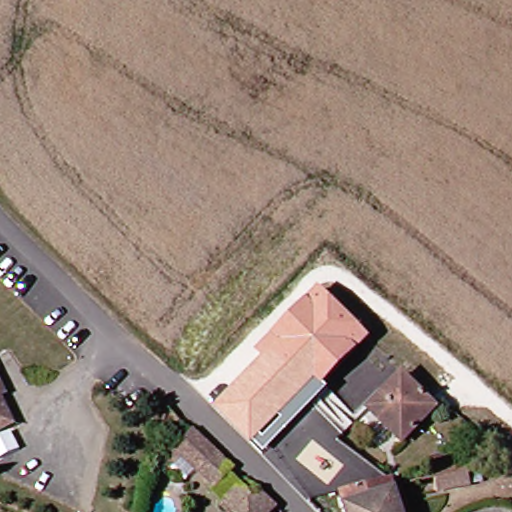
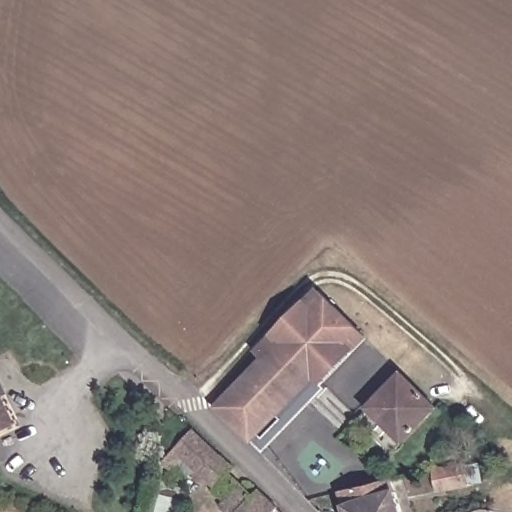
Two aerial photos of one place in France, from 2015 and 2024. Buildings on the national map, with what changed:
unchanged [(320,301),(354,335),(247,442),(212,407),(320,301)]
unchanged [(430,412),(395,445),(365,412),(398,379),(430,412)]
unchanged [(2,395),(0,396),(0,391),(2,395)]
unchanged [(9,423),(0,428),(0,406),(9,423)]
unchanged [(233,473),(207,498),(171,459),(192,439),(233,473)]
unchanged [(469,488),(432,494),(430,475),(464,471),(469,488)]
unchanged [(342,499),(365,497),(387,482),(396,512),(346,512),(342,499)]
unchanged [(221,504),(237,487),(250,500),(257,493),(278,512),(227,512),(221,504)]

